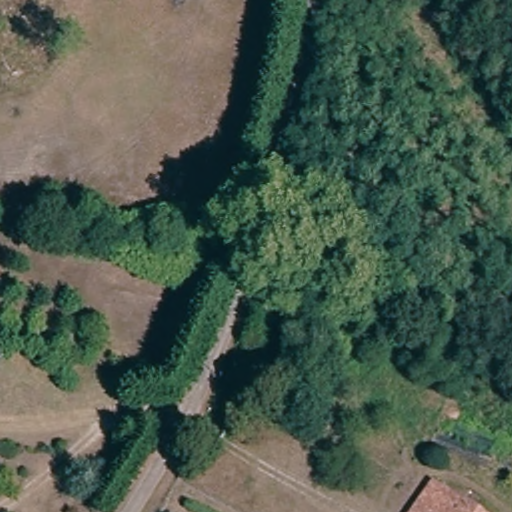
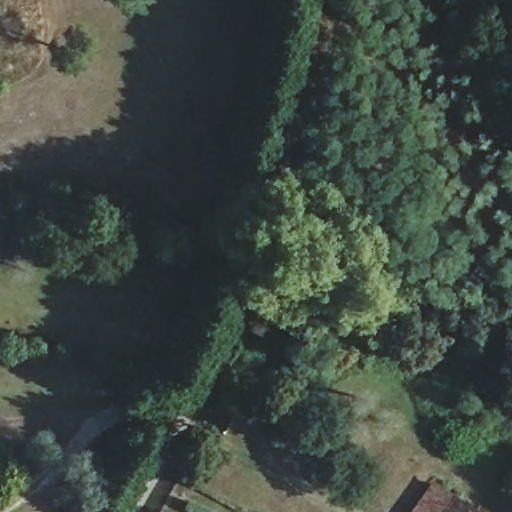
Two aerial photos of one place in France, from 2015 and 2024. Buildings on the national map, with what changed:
unchanged [(472,512),(419,512),(437,486),(472,512)]

